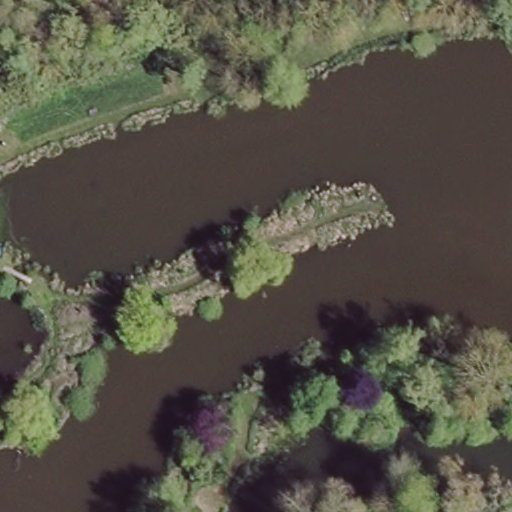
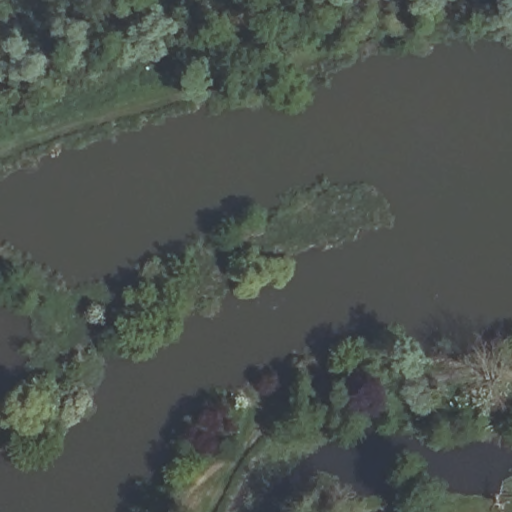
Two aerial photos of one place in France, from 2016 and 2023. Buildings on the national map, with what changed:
unchanged [(80,341),(70,328),(83,317),(92,331),(80,341)]

